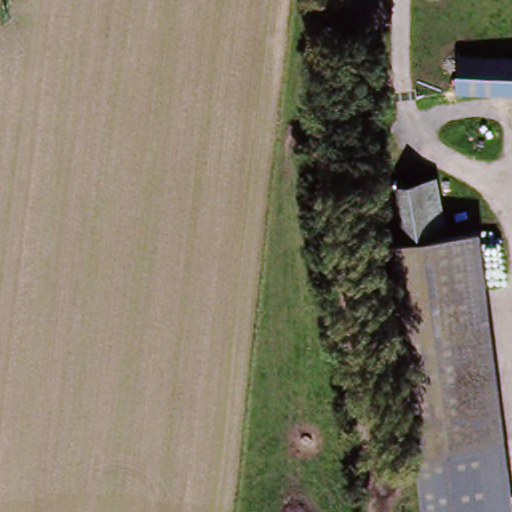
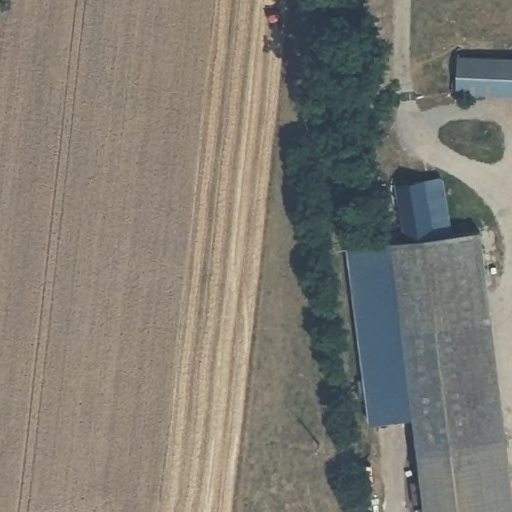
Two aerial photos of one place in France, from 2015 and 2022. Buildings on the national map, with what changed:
unchanged [(459,57),(512,60),(512,97),(457,95),(459,57)]
unchanged [(399,190),(441,184),(448,235),(406,241),(399,190)]
unchanged [(512,512),(428,512),(394,242),(406,241),(448,235),(476,239),(512,510),(512,512)]
new [(416,418),(399,420),(374,250),(394,248),(416,418)]
new [(399,420),(373,423),(351,253),(374,250),(399,420)]

